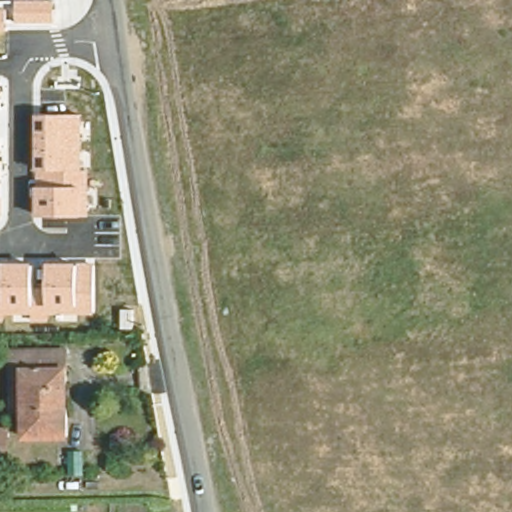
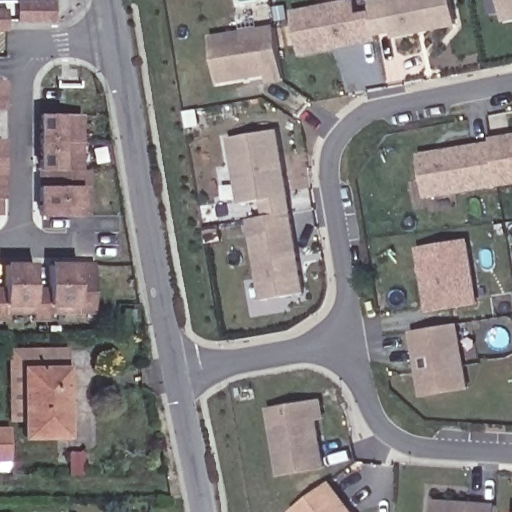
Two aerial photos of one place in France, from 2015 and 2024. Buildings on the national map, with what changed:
new [(354,0),(357,14),(372,11),(377,38),(302,54),(293,10),(346,0),(354,0)]
new [(454,0),(458,22),(426,29),(425,25),(419,26),(416,31),(395,35),(394,29),(376,33),(372,11),(370,0),(454,0)]
new [(502,0),(512,0),(512,19),(506,21),(502,0)]
unchanged [(57,23),(16,23),(16,1),(55,1),(57,23)]
unchanged [(8,31),(0,31),(0,10),(10,10),(8,31)]
new [(276,25),(285,79),(268,81),(267,74),(220,81),(212,34),(276,25)]
unchanged [(1,111),(0,110),(0,80),(1,81),(1,111)]
unchanged [(83,169),(90,170),(91,215),(35,216),(34,185),(39,185),(40,169),(35,169),(37,114),(85,116),(83,169)]
new [(276,130),(287,197),(240,205),(229,138),(276,130)]
new [(492,140),(512,136),(512,183),(499,185),(492,140)]
unchanged [(1,138),(2,197),(5,197),(5,215),(0,215),(0,137),(1,138)]
new [(492,144),(499,185),(427,197),(420,156),(492,144)]
new [(266,216),(262,201),(287,197),(290,212),(266,216)]
new [(262,300),(249,219),(290,212),(305,293),(262,300)]
new [(477,303),(429,311),(419,249),(467,241),(477,303)]
unchanged [(95,314),(52,315),(52,321),(35,322),(34,315),(7,315),(7,322),(0,321),(0,288),(2,289),(3,263),(36,263),(36,287),(47,287),(48,263),(97,265),(95,314)]
new [(134,309),(134,328),(122,328),(122,309),(134,309)]
new [(467,389),(423,396),(412,332),(457,325),(467,389)]
unchanged [(16,363),(15,345),(72,344),(74,432),(29,433),(29,415),(16,415),(16,363)]
new [(324,468),(280,475),(269,409),(321,401),(323,418),(316,419),(324,468)]
unchanged [(14,455),(0,455),(0,424),(13,424),(14,455)]
new [(337,497),(348,512),(288,512),(326,483),(337,497)]
new [(497,512),(434,512),(435,502),(497,506),(497,512)]

